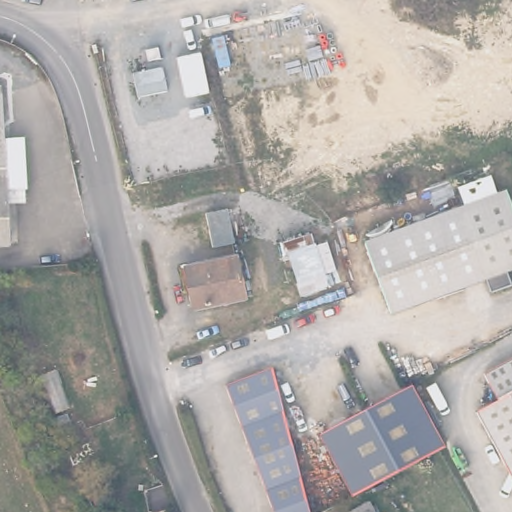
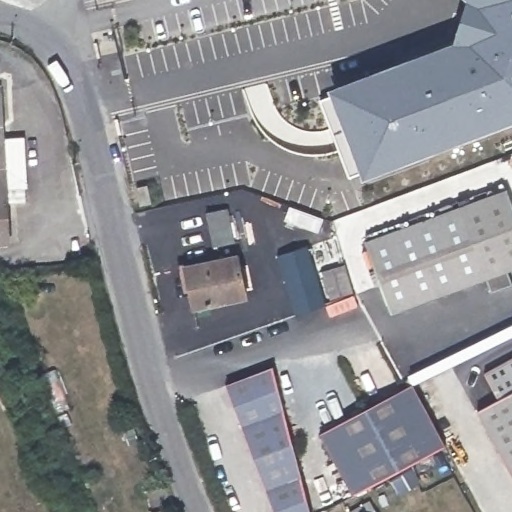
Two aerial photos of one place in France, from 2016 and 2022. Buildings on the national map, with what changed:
new [(362,173),(349,177),(320,98),(332,93),(329,87),(452,40),(465,0),(512,0),(512,122),(363,177),(362,173)]
unchanged [(31,188),(28,188),(29,202),(11,202),(13,244),(0,245),(0,87),(5,89),(5,92),(7,138),(28,137),(31,188)]
unchanged [(512,202),(512,268),(508,269),(512,280),(512,285),(491,292),(486,277),(462,206),(507,189),(512,202)]
unchanged [(240,206),(244,227),(232,229),(235,243),(205,249),(198,214),(240,206)]
unchanged [(462,206),(486,277),(440,294),(412,224),(462,206)]
unchanged [(412,224),(440,294),(391,312),(365,241),(412,224)]
new [(296,314),(276,254),(307,244),(326,303),(296,314)]
unchanged [(237,257),(246,297),(194,308),(186,268),(237,257)]
unchanged [(512,360),(512,465),(482,411),(504,399),(490,372),(512,360)]
unchanged [(226,390),(273,372),(309,512),(272,512),(226,390)]
unchanged [(412,384),(446,445),(440,449),(353,496),(320,434),(406,387),(412,384)]
unchanged [(107,502),(111,510),(107,512),(101,512),(99,507),(107,502)]
unchanged [(369,507),(372,512),(360,512),(369,507)]

